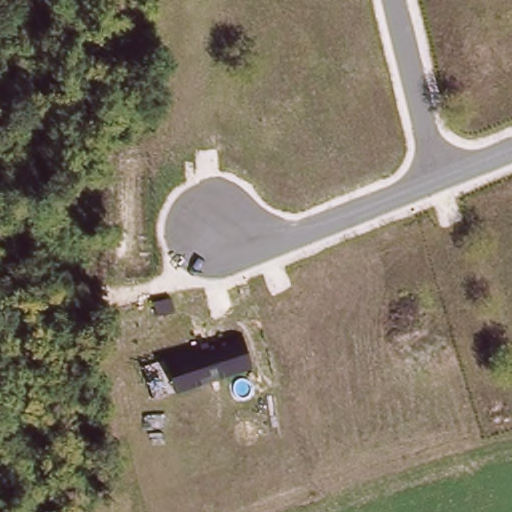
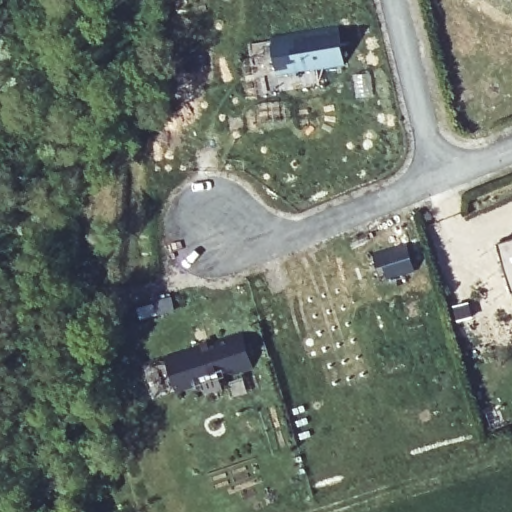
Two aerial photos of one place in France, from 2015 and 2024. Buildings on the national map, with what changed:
new [(337,24),(344,65),(291,72),(275,72),(270,35),(337,24)]
new [(495,246),(512,241),(512,292),(510,293),(495,246)]
unchanged [(163,355),(241,332),(252,368),(173,392),(163,355)]

